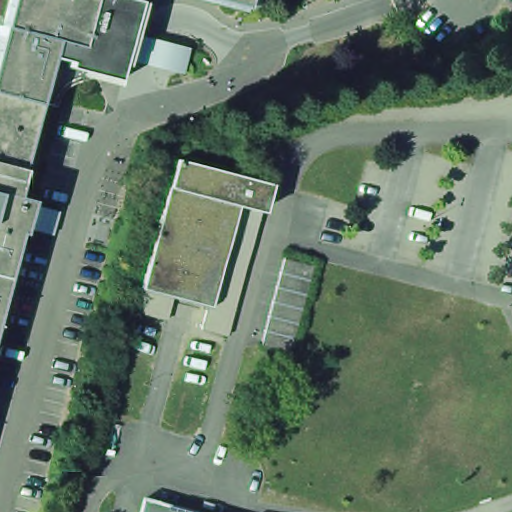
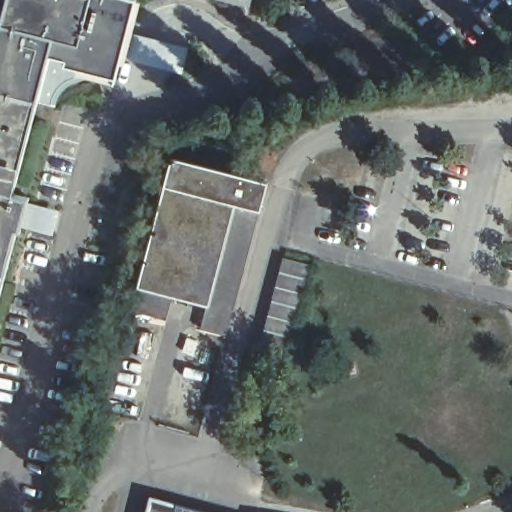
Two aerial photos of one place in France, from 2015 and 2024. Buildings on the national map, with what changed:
unchanged [(0,23),(0,0),(7,0),(1,24),(0,23)]
unchanged [(190,44),(184,76),(124,55),(117,81),(68,67),(69,61),(55,58),(48,56),(12,194),(28,198),(19,231),(16,230),(0,225),(0,27),(1,24),(7,0),(138,0),(133,24),(190,44)]
unchanged [(245,5),(228,0),(250,0),(249,6),(245,5)]
unchanged [(132,311),(138,286),(172,157),(267,182),(226,335),(200,329),(207,304),(172,295),(166,320),(132,311)]
unchanged [(16,230),(0,290),(0,225),(16,230)]
unchanged [(264,335),(268,320),(271,306),(275,291),(279,277),(283,262),(312,270),(308,285),(304,299),(300,314),(296,328),(293,342),(289,357),(260,349),(264,335)]
unchanged [(150,491),(189,502),(228,512),(144,512),(150,491)]

